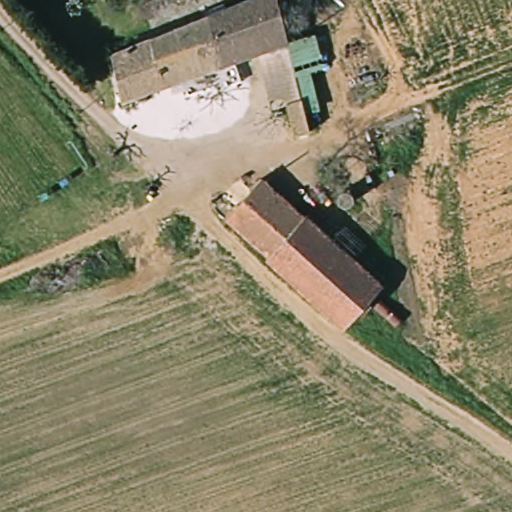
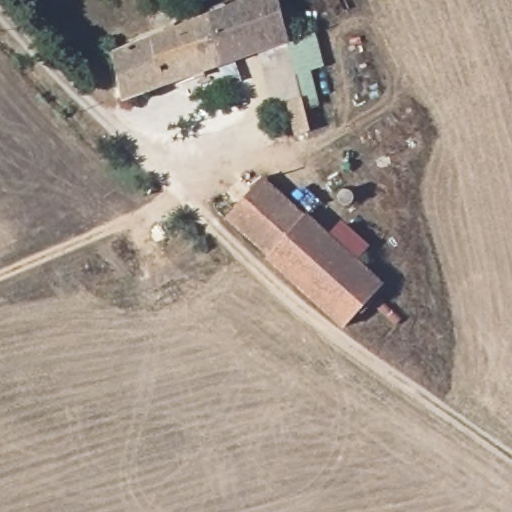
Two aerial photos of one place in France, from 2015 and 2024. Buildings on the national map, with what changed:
unchanged [(251,0),(281,0),(292,41),(175,82),(160,34),(251,0)]
unchanged [(115,50),(121,47),(116,32),(136,25),(143,41),(160,34),(175,82),(128,98),(115,50)]
unchanged [(301,89),(312,125),(296,128),(288,92),(301,89)]
unchanged [(254,182),(378,277),(348,323),(221,219),(254,182)]

